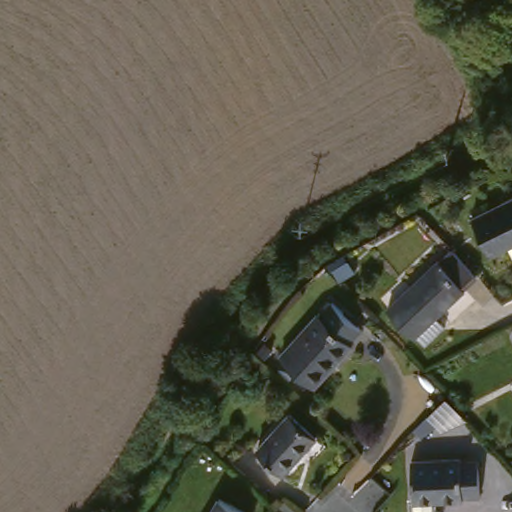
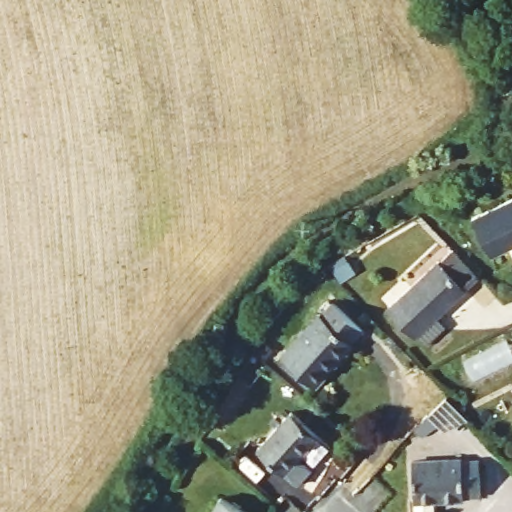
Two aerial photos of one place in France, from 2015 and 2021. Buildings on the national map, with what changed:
unchanged [(509,247),(488,260),(468,222),(512,197),(512,253),(509,247)]
unchanged [(423,348),(413,337),(411,338),(386,308),(443,262),(443,263),(452,256),(477,282),(465,292),(464,295),(433,320),(443,332),(423,348)]
unchanged [(286,361),(323,317),(325,318),(336,306),(363,331),(353,343),(356,346),(317,388),(286,361)]
unchanged [(436,435),(421,421),(437,402),(456,423),(436,435)]
unchanged [(254,453),(287,416),(314,439),(281,477),(254,453)]
unchanged [(415,512),(415,511),(413,511),(414,500),(411,458),(461,456),(460,460),(479,459),(481,495),(462,495),(462,497),(433,499),(433,510),(431,512),(415,512)]
unchanged [(240,512),(207,512),(216,498),(240,512)]

